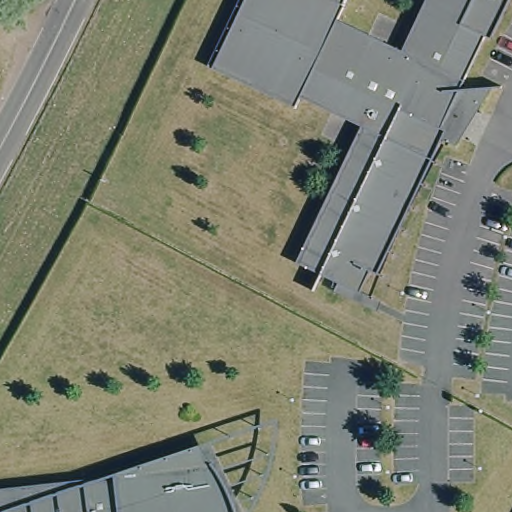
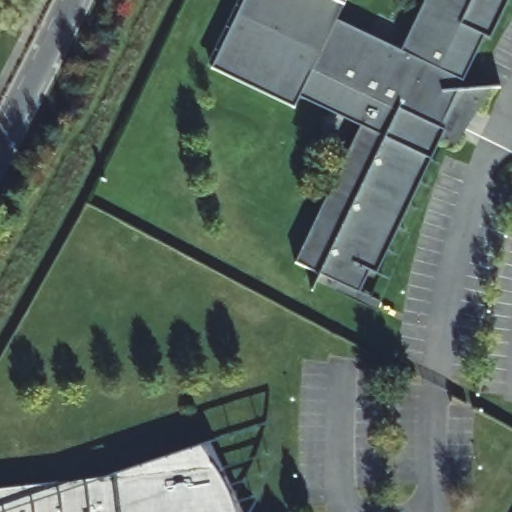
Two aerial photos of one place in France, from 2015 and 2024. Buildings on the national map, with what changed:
unchanged [(347,0),(338,19),(402,50),(426,0),(511,0),(492,39),(486,36),(461,89),(492,89),(491,90),(459,91),(441,127),(447,130),(378,275),(371,272),(360,293),(295,262),(361,126),(300,97),(295,107),(212,67),(244,0),(347,0)]
unchanged [(371,272),(378,275),(447,130),(441,127),(459,91),(491,90),(487,97),(483,103),(478,113),(473,120),(468,128),(463,137),(457,146),(454,151),(451,158),(445,167),(437,182),(434,188),(431,194),(428,200),(424,209),(419,217),(416,225),(411,235),(407,243),(404,250),(402,255),(399,263),(397,268),(393,275),(389,283),(387,289),(385,295),(383,300),(381,305),(379,312),(360,293),(371,272)]
unchanged [(111,480),(206,449),(229,512),(0,512),(0,495),(111,480)]

